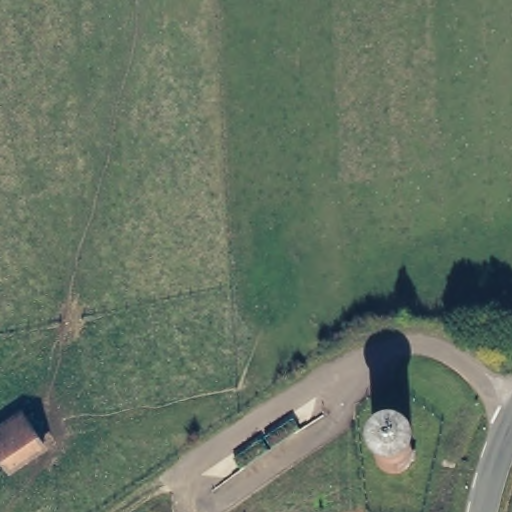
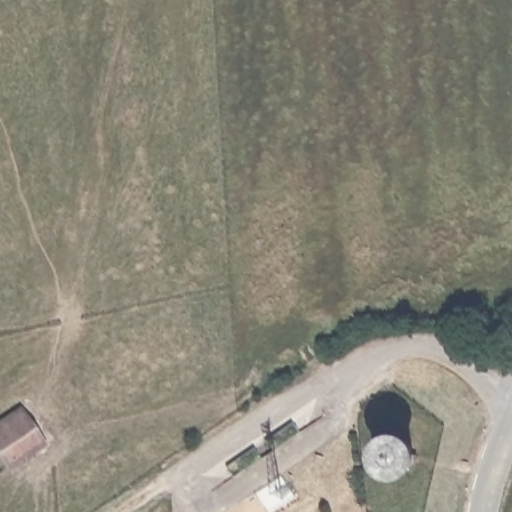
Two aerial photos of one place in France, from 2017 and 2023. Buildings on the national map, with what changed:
unchanged [(22,406),(38,431),(2,456),(0,454),(0,421),(22,406)]

